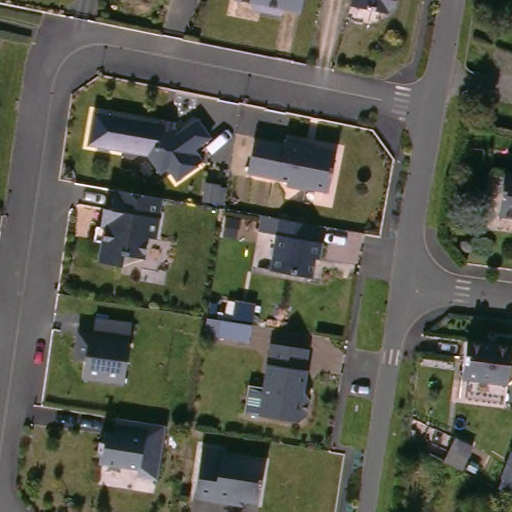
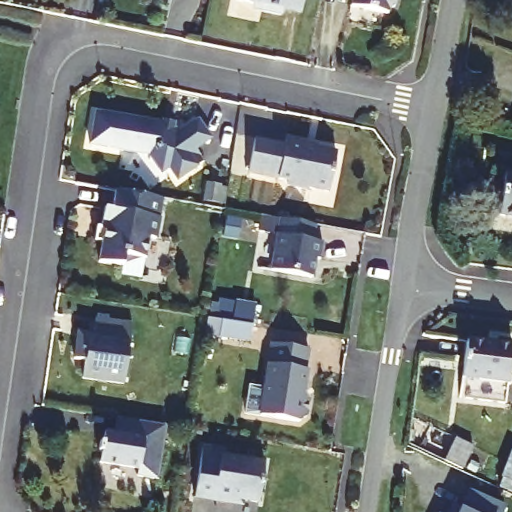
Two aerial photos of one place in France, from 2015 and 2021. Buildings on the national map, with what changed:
unchanged [(289,8),(288,13),(268,9),(269,4),(247,0),(310,0),(308,12),(289,8)]
unchanged [(396,7),(389,11),(389,14),(353,6),(354,0),(397,0),(396,7)]
unchanged [(177,165),(169,170),(155,152),(96,143),(101,111),(143,117),(143,120),(168,124),(168,122),(180,124),(185,130),(204,116),(218,133),(199,147),(208,159),(185,176),(177,165)]
unchanged [(290,139),(291,134),(312,138),(312,141),(342,147),(333,190),(312,186),(312,188),(292,184),(293,179),(253,171),(260,133),(290,139)]
unchanged [(512,170),(512,212),(500,210),(505,169),(512,170)]
unchanged [(161,231),(160,235),(153,234),(149,255),(129,252),(128,262),(104,258),(108,238),(100,237),(102,223),(106,224),(109,205),(117,206),(120,187),(168,195),(161,231)]
unchanged [(317,252),(317,254),(322,255),(319,274),(278,267),(282,248),(287,216),(323,222),(317,252)]
unchanged [(128,358),(133,358),(129,382),(89,376),(91,358),(80,356),(83,336),(94,337),(99,334),(103,316),(134,321),(128,358)]
unchanged [(248,342),(202,335),(201,335),(204,318),(250,325),(248,342)]
unchanged [(512,335),(512,374),(510,393),(464,388),(470,331),(512,335)]
unchanged [(309,370),(311,370),(308,391),(313,398),(310,417),(304,422),(264,416),(275,344),(313,349),(309,370)]
unchanged [(164,442),(159,479),(139,476),(140,469),(111,465),(113,455),(109,454),(112,440),(115,440),(116,435),(125,436),(128,420),(135,421),(166,425),(164,442)]
unchanged [(438,453),(447,434),(464,442),(454,461),(438,453)]
unchanged [(198,488),(204,442),(224,445),(224,451),(267,458),(260,498),(237,494),(237,499),(215,496),(197,493),(198,488)]
unchanged [(506,476),(512,460),(512,478),(506,476)]
new [(461,510),(463,511),(471,492),(505,508),(503,512),(450,512),(453,506),(461,510)]

